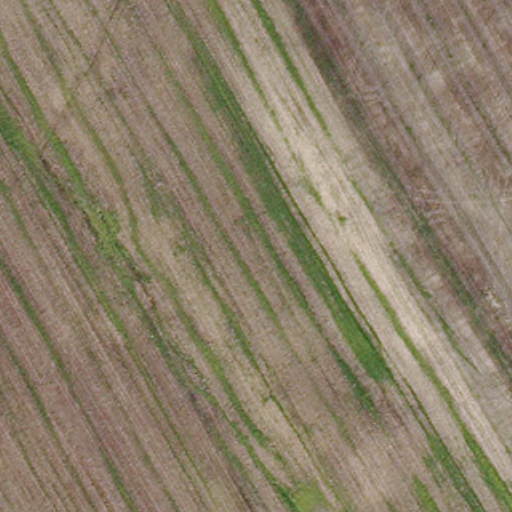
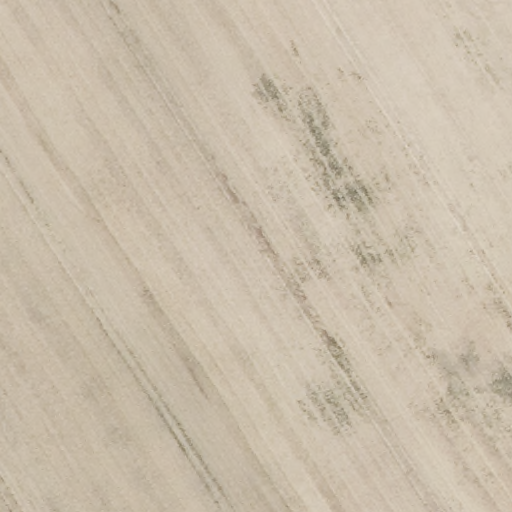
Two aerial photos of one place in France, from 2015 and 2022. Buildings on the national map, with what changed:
[]

